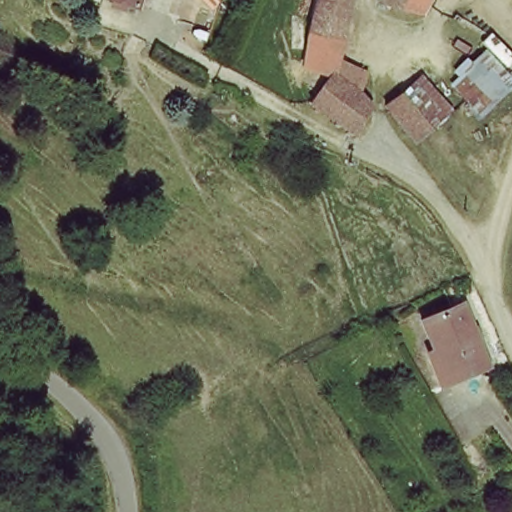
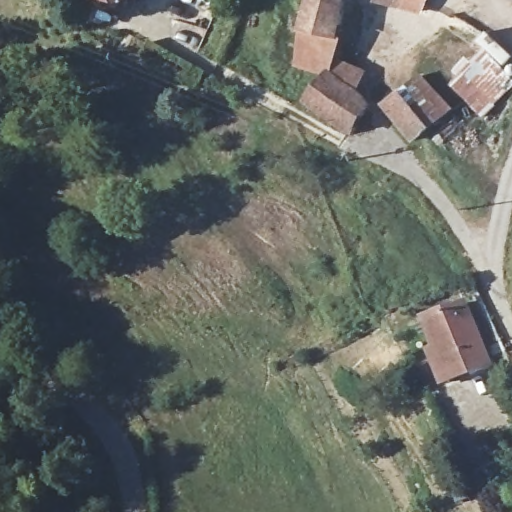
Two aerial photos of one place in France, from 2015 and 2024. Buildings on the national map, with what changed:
unchanged [(100,0),(131,0),(128,9),(100,0)]
unchanged [(300,52),(311,0),(347,0),(335,59),(300,52)]
unchanged [(408,0),(407,3),(398,0),(408,0)]
unchanged [(510,89),(491,119),(460,92),(481,58),(510,89)]
unchanged [(371,110),(357,133),(309,100),(329,69),(376,104),(371,110)]
unchanged [(385,108),(421,81),(451,111),(416,146),(385,108)]
unchanged [(421,310),(443,304),(446,313),(465,308),(487,375),(465,382),(447,388),(444,377),(421,310)]

